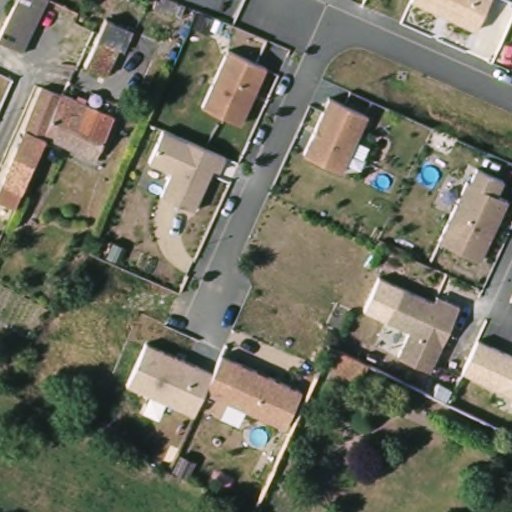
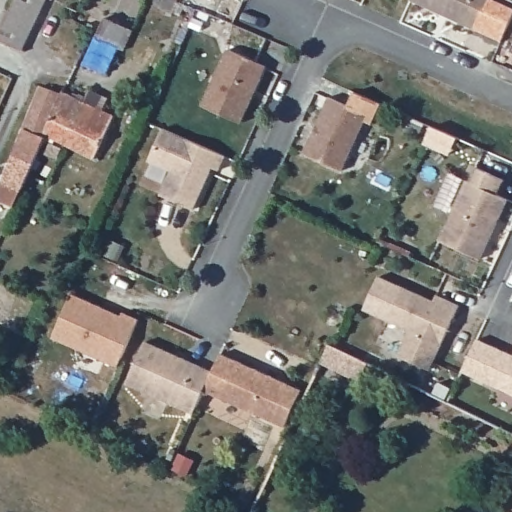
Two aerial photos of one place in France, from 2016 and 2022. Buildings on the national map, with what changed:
unchanged [(6,44),(26,0),(55,0),(31,55),(6,44)]
unchanged [(174,9),(156,2),(157,0),(178,0),(174,9)]
unchanged [(478,32),(414,0),(493,0),(478,32)]
unchanged [(106,19),(126,27),(104,76),(84,66),(106,19)]
unchanged [(270,66),(243,123),(203,102),(229,46),(270,66)]
unchanged [(7,181),(35,114),(46,86),(66,95),(51,136),(18,209),(8,205),(0,201),(0,199),(7,181)]
unchanged [(67,93),(82,100),(79,110),(114,125),(100,157),(51,136),(66,95),(67,93)]
unchanged [(371,114),(343,171),(305,151),(332,95),(371,114)]
unchanged [(149,160),(164,126),(226,155),(219,170),(212,167),(194,210),(160,194),(171,170),(149,160)]
unchanged [(507,179),(501,192),(510,196),(484,260),(441,240),(467,180),(471,182),(478,165),(507,179)]
unchanged [(435,299),(439,292),(462,303),(433,370),(400,354),(410,330),(386,319),(403,283),(435,299)]
new [(122,315),(123,311),(137,318),(117,365),(53,336),(73,293),(122,315)]
unchanged [(481,336),(512,351),(512,394),(465,371),(481,336)]
unchanged [(213,370),(221,352),(302,389),(285,428),(204,390),(193,413),(126,383),(145,339),(213,370)]
unchanged [(338,350),(376,368),(369,385),(330,366),(332,361),(337,350),(338,350)]

